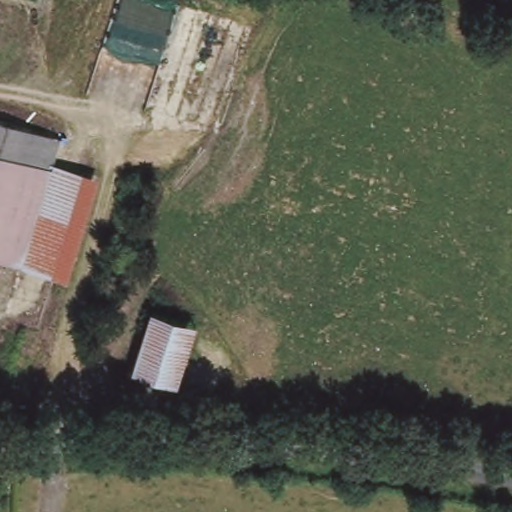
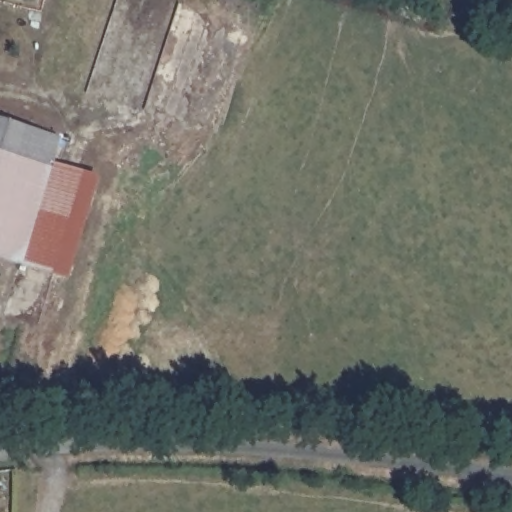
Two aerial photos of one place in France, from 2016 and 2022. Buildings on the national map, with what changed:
unchanged [(50,163),(48,169),(0,154),(0,120),(56,137),(50,163)]
unchanged [(19,266),(0,260),(0,154),(48,169),(19,266)]
unchanged [(48,169),(50,163),(80,173),(50,275),(19,266),(48,169)]
demolished [(198,325),(180,387),(133,372),(151,311),(198,325)]

